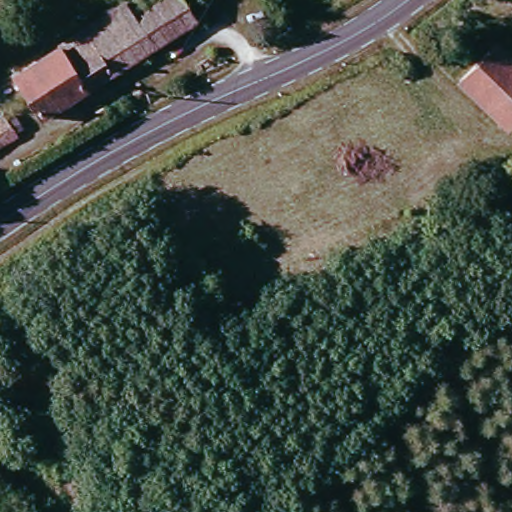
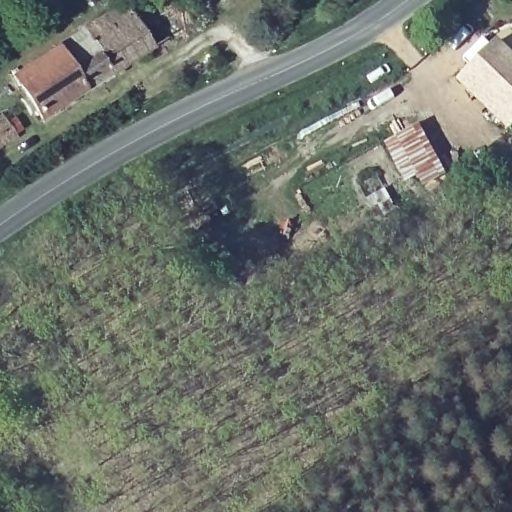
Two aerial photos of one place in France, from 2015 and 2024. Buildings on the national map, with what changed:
unchanged [(46,116),(30,91),(0,110),(0,80),(130,0),(194,0),(204,16),(46,116)]
unchanged [(510,125),(465,81),(500,46),(512,59),(512,123),(510,125)]
unchanged [(0,118),(5,115),(16,132),(0,142),(0,118)]
new [(446,175),(423,188),(395,138),(418,125),(446,175)]

